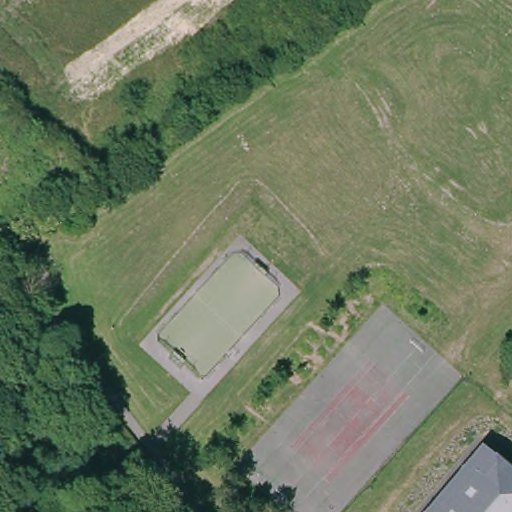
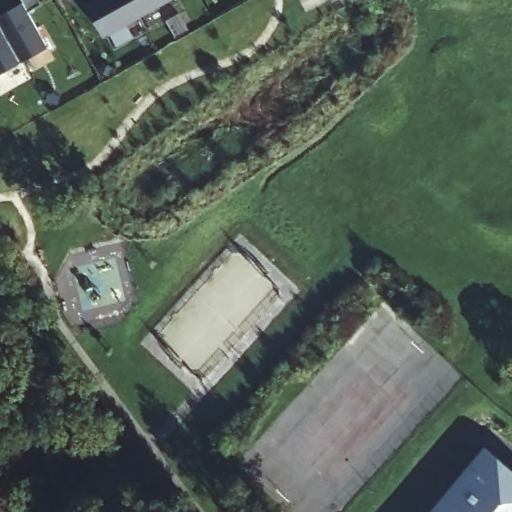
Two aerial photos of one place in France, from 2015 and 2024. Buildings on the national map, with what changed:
new [(85,5),(93,0),(169,0),(171,4),(103,41),(85,5)]
new [(0,71),(0,18),(18,7),(40,50),(0,71)]
unchanged [(480,448),(512,475),(512,512),(426,512),(480,448)]

